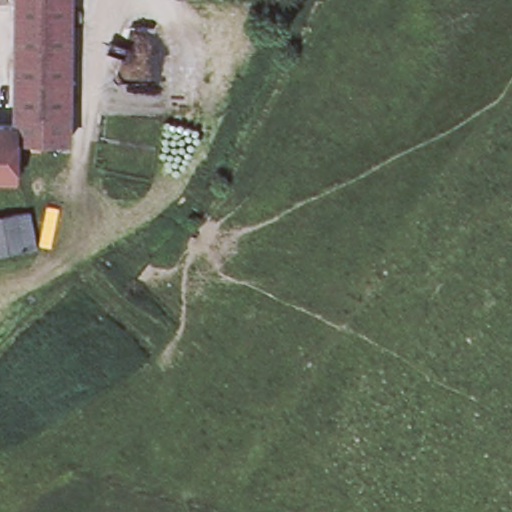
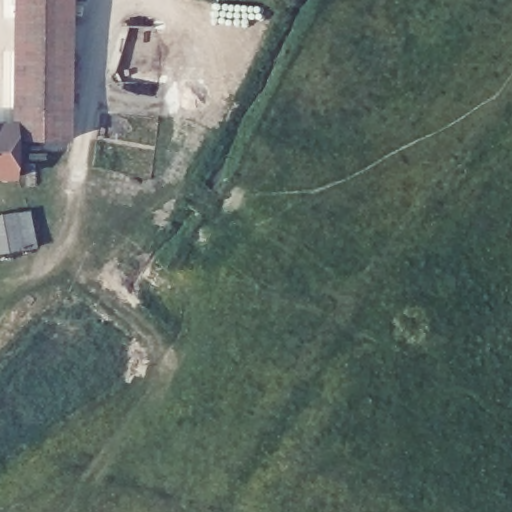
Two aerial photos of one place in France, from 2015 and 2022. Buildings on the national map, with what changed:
unchanged [(75,0),(75,5),(74,27),(74,137),(15,137),(16,123),(17,0),(75,0)]
unchanged [(15,137),(74,137),(74,184),(51,183),(51,153),(20,152),(20,178),(0,178),(0,123),(16,123),(15,137)]
unchanged [(33,247),(0,252),(0,214),(27,210),(33,247)]

